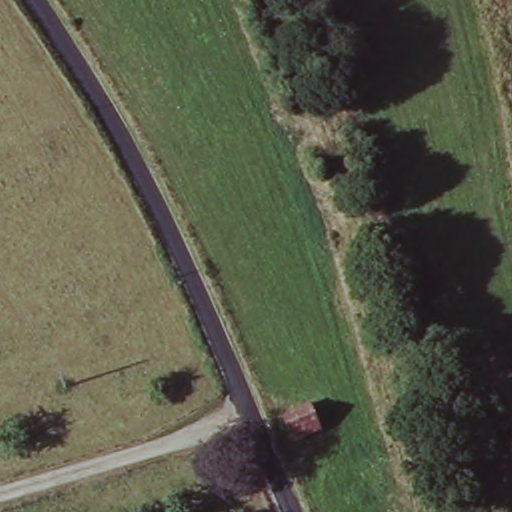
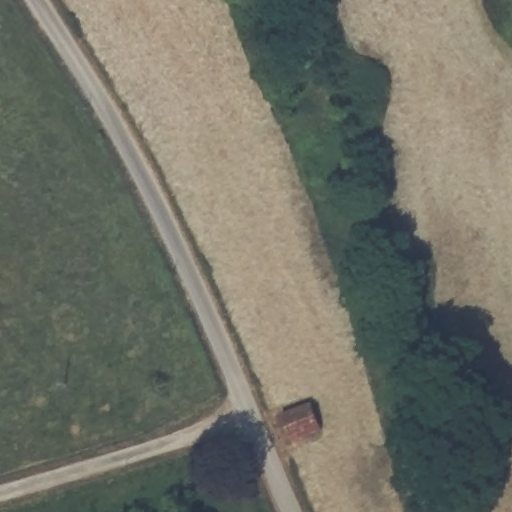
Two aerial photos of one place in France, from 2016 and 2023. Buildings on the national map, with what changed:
unchanged [(316,406),(326,431),(298,443),(287,417),(316,406)]

